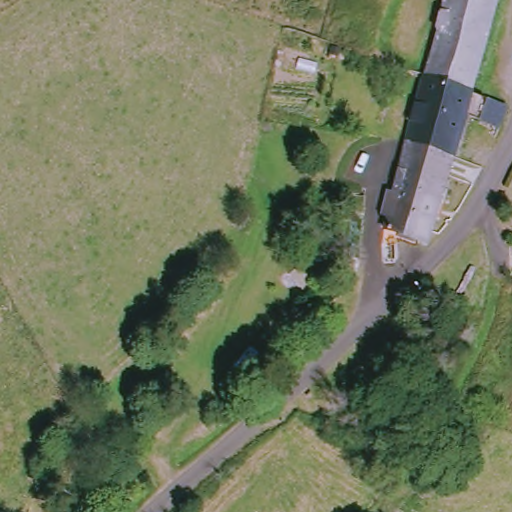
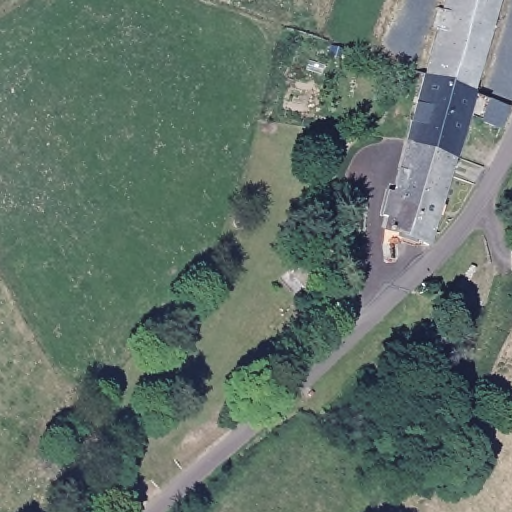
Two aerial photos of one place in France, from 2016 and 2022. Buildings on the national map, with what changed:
unchanged [(424,76),(443,0),(498,0),(474,92),(424,76)]
unchanged [(406,146),(424,76),(474,92),(508,109),(495,140),(483,136),(487,123),(465,116),(453,159),(406,146)]
unchanged [(383,236),(387,216),(380,215),(387,191),(394,193),(406,146),(453,159),(427,244),(412,239),(410,245),(399,241),(383,236)]

